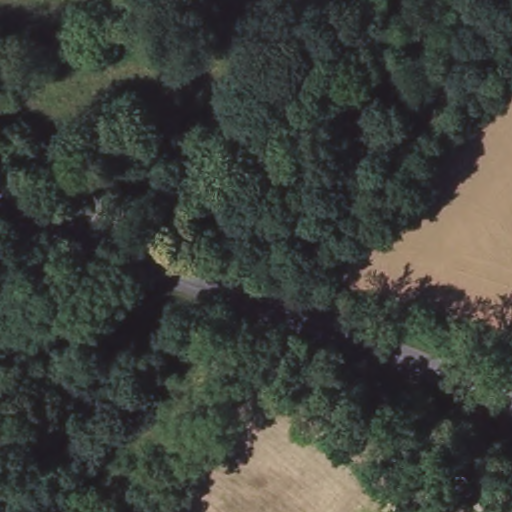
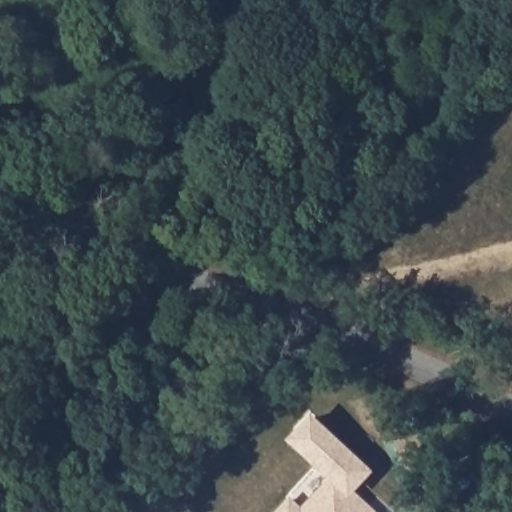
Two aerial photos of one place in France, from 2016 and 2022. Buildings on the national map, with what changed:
new [(335,477),(309,452),(294,439),(313,419),(328,432),(369,472),(350,491),(373,512),(280,512),(291,500),(303,512),(335,477)]

